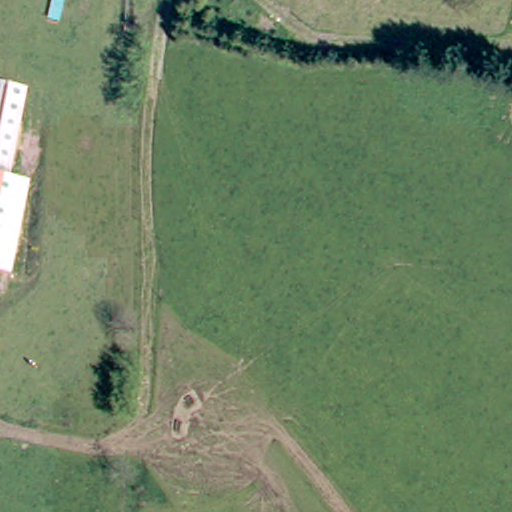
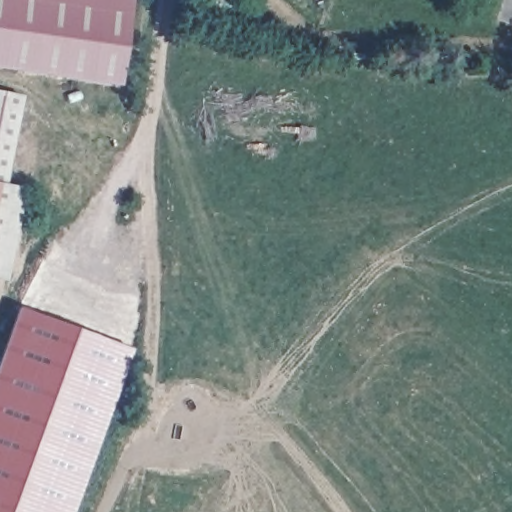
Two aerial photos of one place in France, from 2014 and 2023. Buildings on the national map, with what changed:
new [(0,0),(131,0),(120,85),(0,68),(0,0)]
unchanged [(7,185),(26,187),(7,281),(0,280),(0,92),(23,96),(7,185)]
new [(132,349),(72,512),(0,512),(0,354),(17,307),(132,349)]

